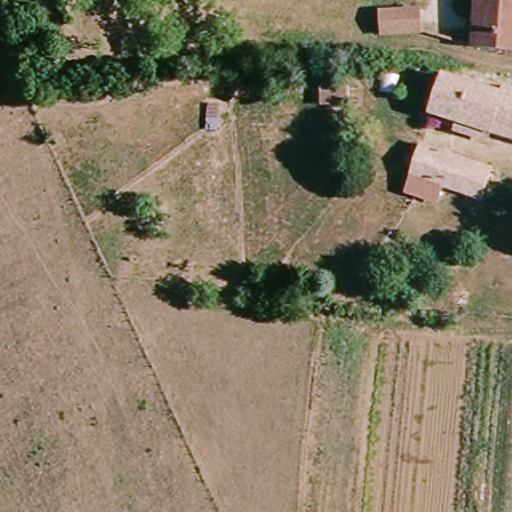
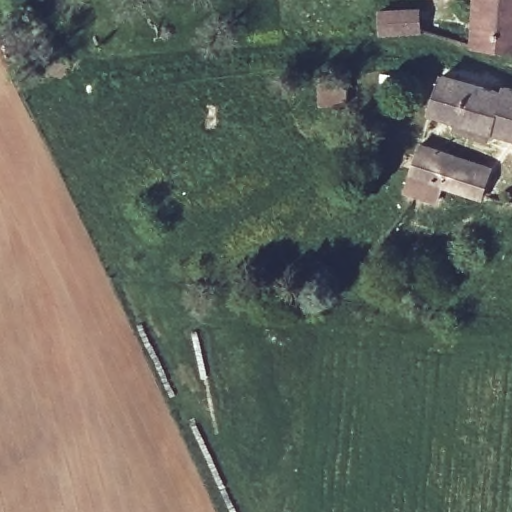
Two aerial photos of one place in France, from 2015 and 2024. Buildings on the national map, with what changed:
unchanged [(512,0),(512,50),(491,48),(493,9),(506,8),(507,0),(512,0)]
unchanged [(379,7),(422,7),(426,32),(385,30),(379,7)]
unchanged [(453,76),(485,85),(512,93),(512,132),(443,112),(453,76)]
unchanged [(426,170),(432,146),(499,166),(490,192),(426,170)]

